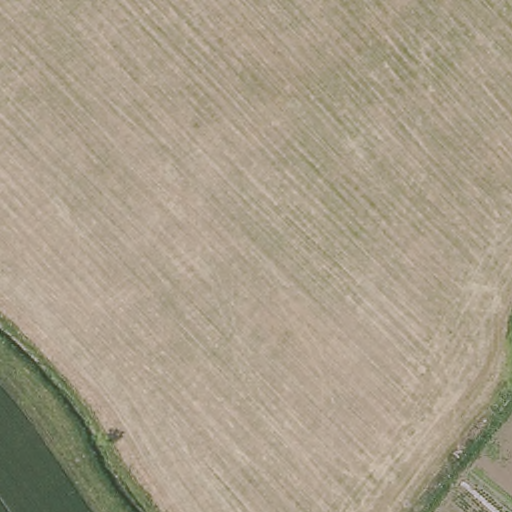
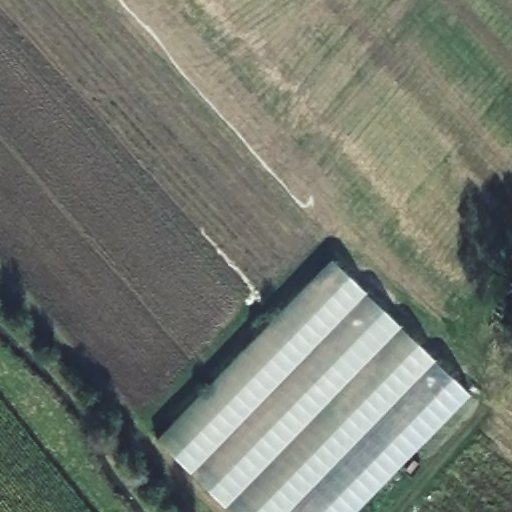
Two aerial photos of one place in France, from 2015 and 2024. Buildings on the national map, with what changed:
new [(470,395),(357,512),(229,512),(156,441),(331,260),(470,395)]

